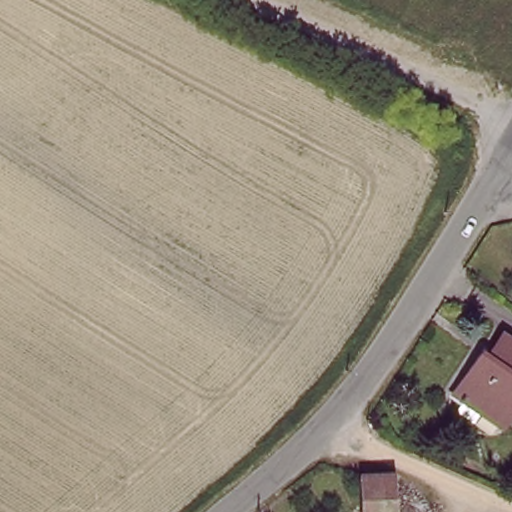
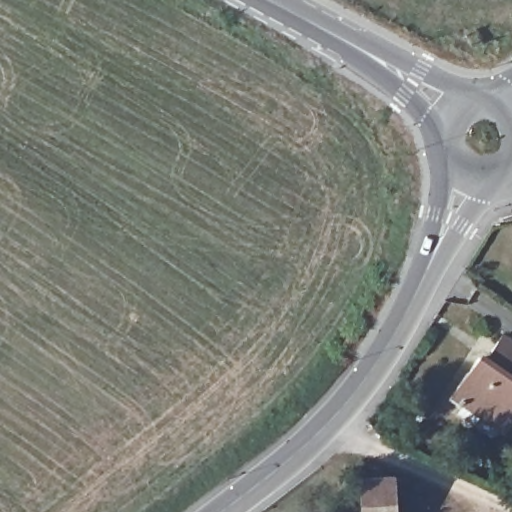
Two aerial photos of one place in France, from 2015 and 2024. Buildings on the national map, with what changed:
unchanged [(480,416),(479,417),(461,405),(470,393),(465,389),(458,385),(473,364),(485,347),(491,352),(507,329),(512,333),(512,415),(508,420),(506,419),(501,426),(491,424),(480,416)]
unchanged [(393,512),(362,512),(360,476),(390,475),(393,512)]

